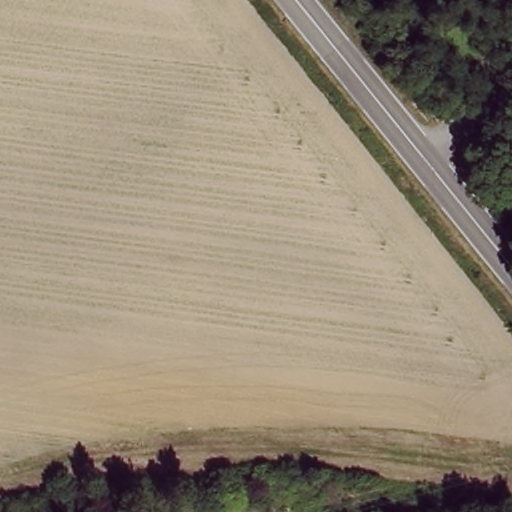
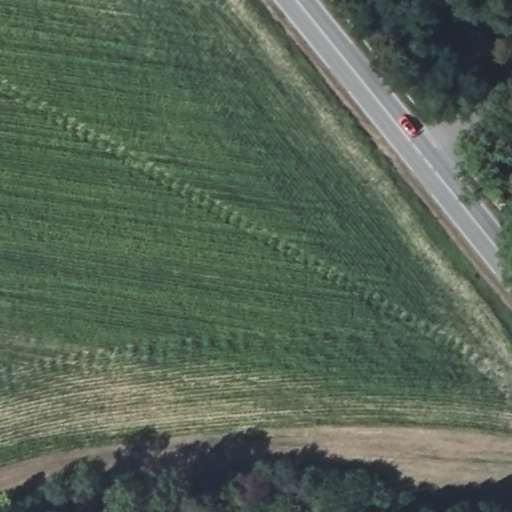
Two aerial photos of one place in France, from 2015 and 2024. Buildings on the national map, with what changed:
[]

